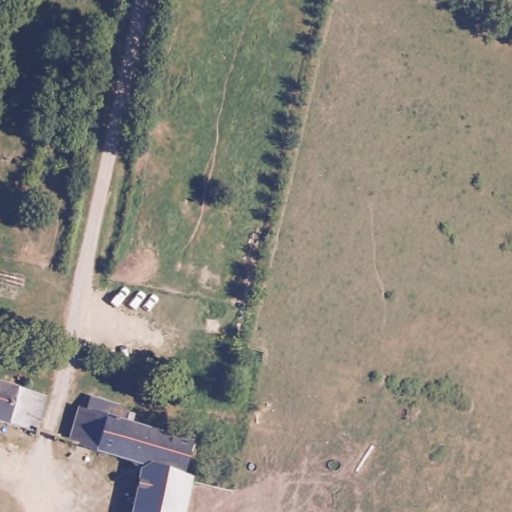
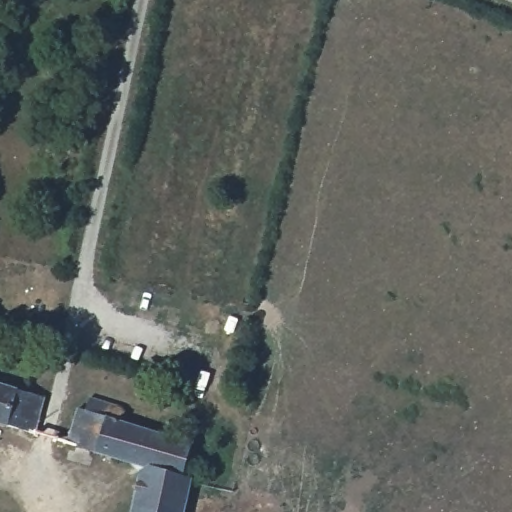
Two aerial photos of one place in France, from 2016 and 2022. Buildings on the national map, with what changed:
unchanged [(34,426),(0,416),(0,381),(42,393),(34,426)]
unchanged [(175,512),(159,512),(128,507),(139,460),(87,445),(58,436),(68,406),(93,412),(101,414),(105,398),(109,399),(118,418),(184,437),(173,471),(182,473),(175,512)]
unchanged [(128,507),(159,512),(127,512),(128,507)]

